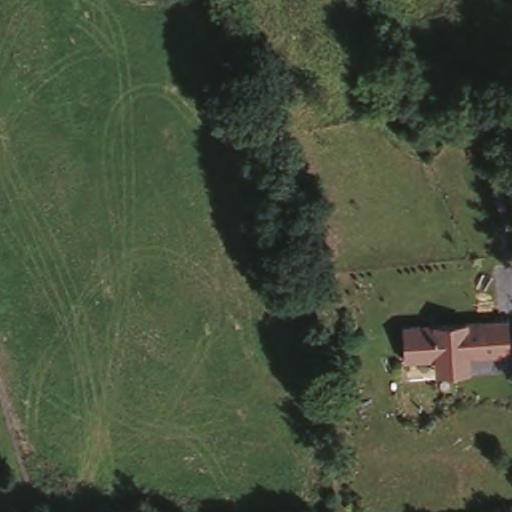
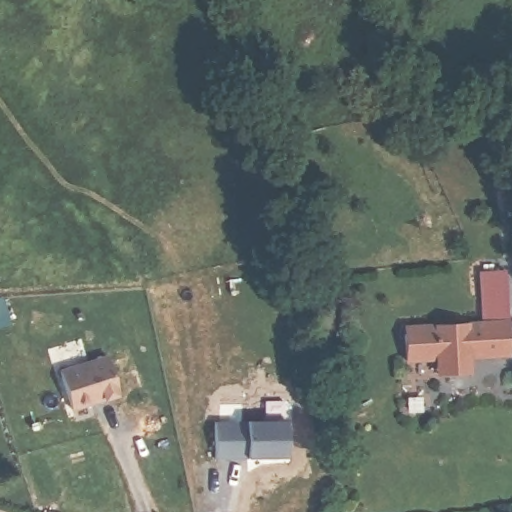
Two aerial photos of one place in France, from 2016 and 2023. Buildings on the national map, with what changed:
unchanged [(510,320),(512,356),(461,354),(462,368),(438,369),(437,360),(402,360),(403,328),(510,320)]
new [(109,358),(121,395),(73,412),(61,374),(109,358)]
new [(287,422),(287,462),(215,463),(216,424),(287,422)]

